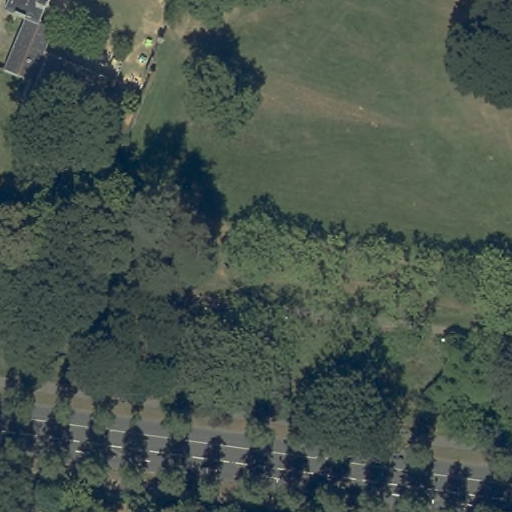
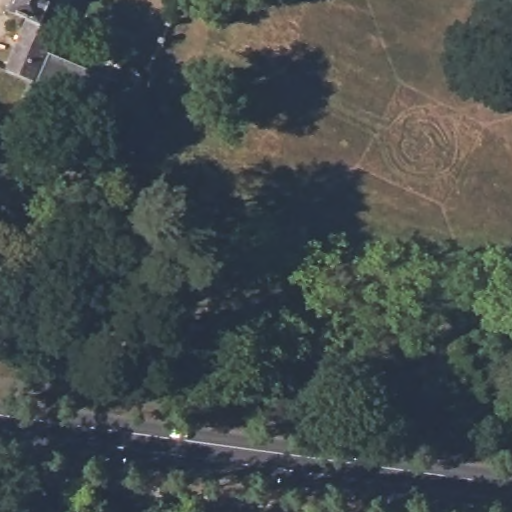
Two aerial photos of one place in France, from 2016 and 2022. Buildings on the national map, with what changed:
unchanged [(42,20),(56,26),(54,29),(45,50),(110,76),(90,125),(21,97),(27,82),(4,72),(27,19),(5,9),(9,0),(50,0),(42,20)]
unchanged [(110,133),(123,102),(140,109),(126,140),(110,133)]

